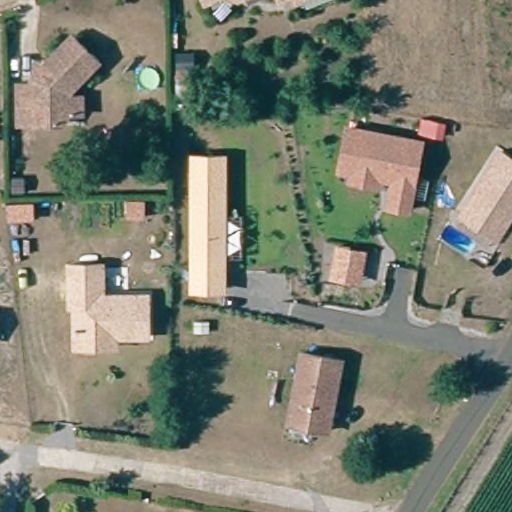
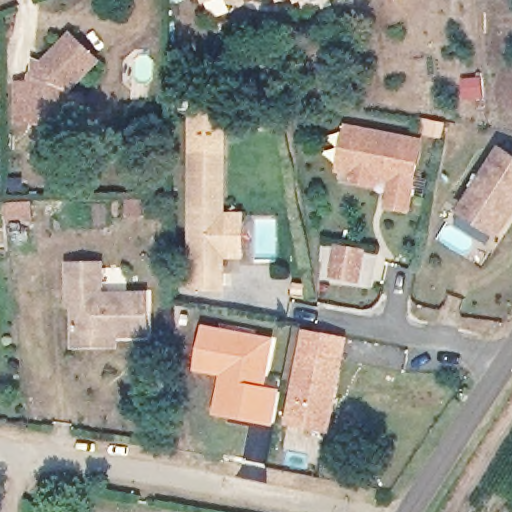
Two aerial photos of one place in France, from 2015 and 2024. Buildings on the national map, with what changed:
unchanged [(201,0),(222,0),(204,7),(201,0)]
unchanged [(233,0),(245,0),(234,4),(233,0)]
demolished [(244,0),(249,0),(246,1),(244,0)]
unchanged [(276,0),(293,0),(279,6),(276,0)]
unchanged [(293,0),(308,0),(295,5),(293,0)]
unchanged [(80,121),(65,121),(60,128),(17,130),(16,92),(26,92),(28,84),(36,80),(38,66),(68,41),(94,71),(65,99),(78,101),(80,121)]
unchanged [(434,136),(437,122),(451,124),(448,138),(434,136)]
unchanged [(413,212),(392,208),(398,182),(392,177),(382,179),(380,187),(355,182),(357,174),(344,171),(353,128),(366,131),(427,143),(413,212)]
unchanged [(463,211),(505,147),(512,152),(512,210),(497,233),(463,211)]
unchanged [(193,152),(224,153),(222,270),(222,287),(192,287),(193,152)]
unchanged [(124,218),(123,202),(138,202),(139,218),(124,218)]
unchanged [(4,205),(30,205),(30,221),(4,222),(4,205)]
unchanged [(73,346),(73,336),(73,296),(68,296),(68,263),(100,263),(100,295),(146,295),(146,336),(114,336),(114,346),(73,346)]
new [(201,325),(274,337),(265,386),(280,389),(272,426),(208,414),(218,376),(192,371),(201,325)]
unchanged [(346,366),(327,432),(290,422),(308,356),(346,366)]

